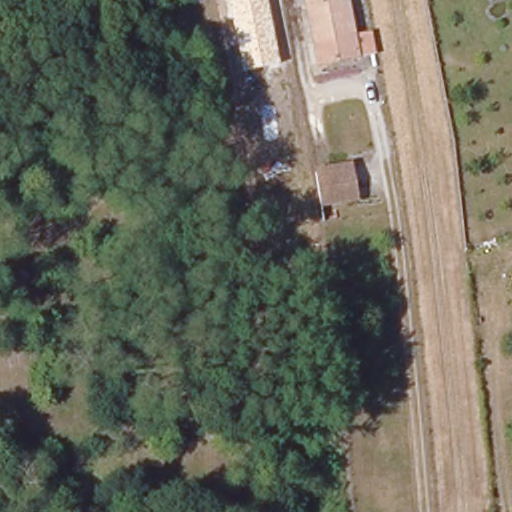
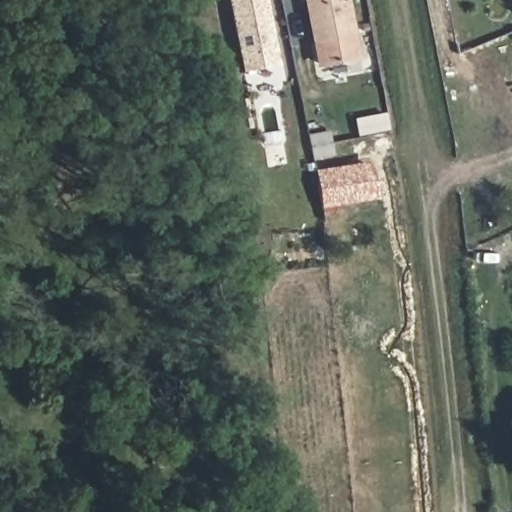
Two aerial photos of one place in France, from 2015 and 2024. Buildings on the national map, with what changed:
unchanged [(238,72),(224,0),(269,0),(279,66),(238,72)]
unchanged [(352,59),(313,66),(299,0),(339,0),(348,39),(364,36),(369,55),(352,59)]
unchanged [(352,199),(318,206),(312,175),(347,169),(352,199)]

